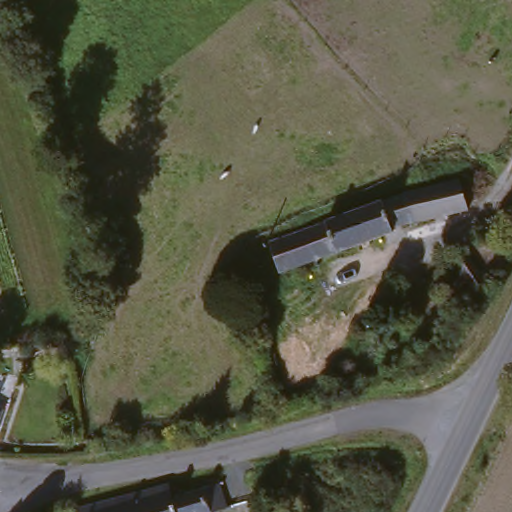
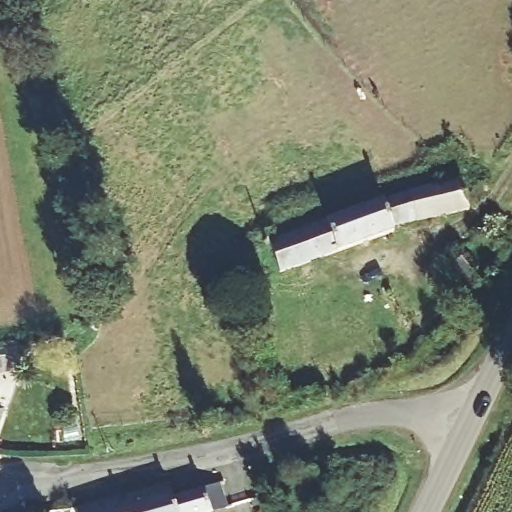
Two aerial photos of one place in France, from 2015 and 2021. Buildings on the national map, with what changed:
unchanged [(470,214),(394,230),(398,236),(280,268),(272,239),(394,200),(422,192),(466,189),(470,214)]
unchanged [(450,266),(462,258),(478,281),(482,286),(467,303),(450,266)]
unchanged [(203,512),(80,512),(167,487),(172,501),(199,495),(203,512)]

